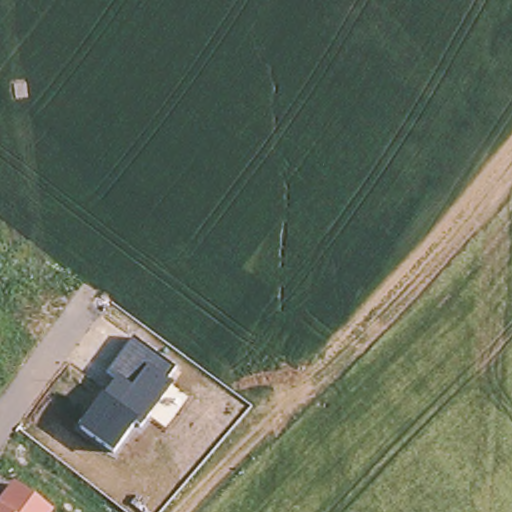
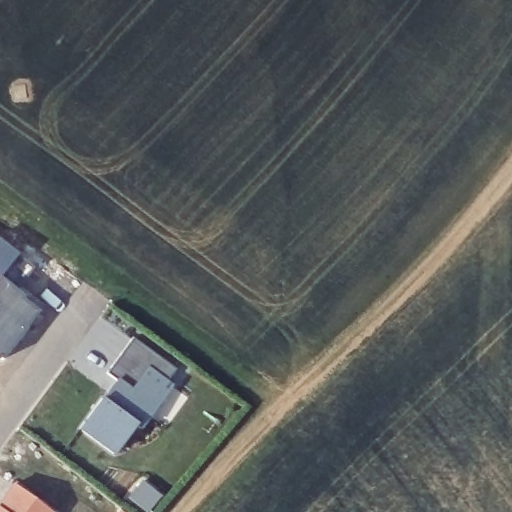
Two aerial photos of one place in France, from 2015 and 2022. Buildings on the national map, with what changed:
new [(20,254),(2,278),(40,309),(3,361),(0,359),(0,239),(20,254)]
unchanged [(100,399),(103,401),(117,383),(105,373),(130,337),(174,369),(165,382),(170,386),(138,429),(133,425),(111,454),(77,429),(100,399)]
unchanged [(17,485),(54,512),(0,512),(0,508),(17,485)]

